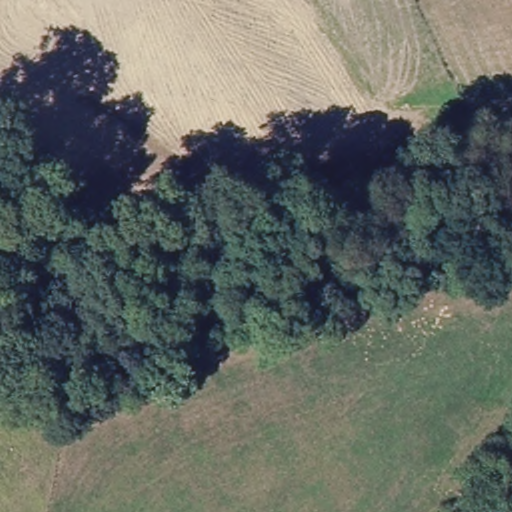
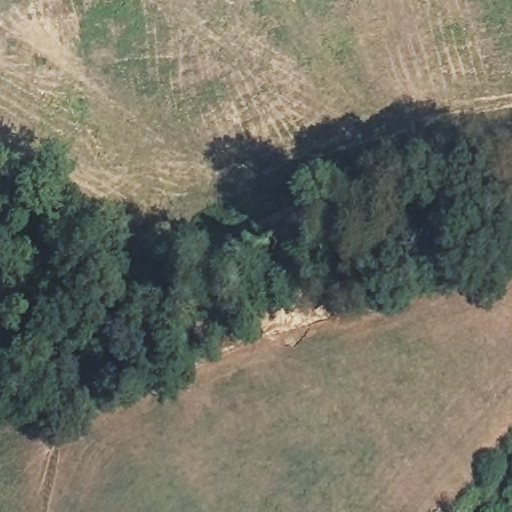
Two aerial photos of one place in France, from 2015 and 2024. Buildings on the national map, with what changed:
[]

